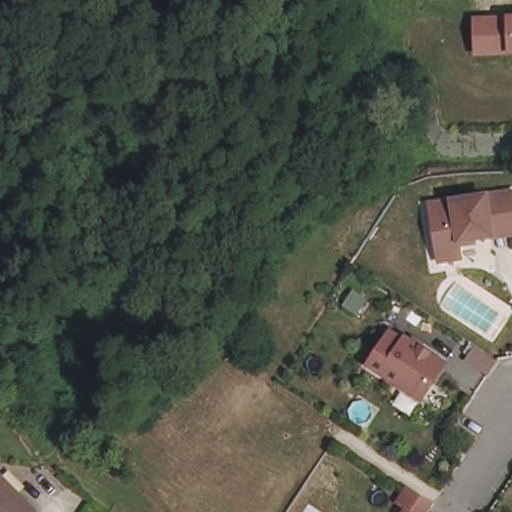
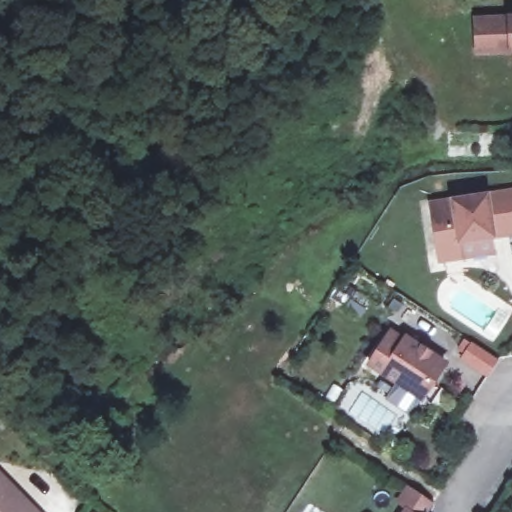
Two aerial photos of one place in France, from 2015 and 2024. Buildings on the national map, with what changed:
unchanged [(479,17),(512,16),(512,48),(480,49),(479,17)]
unchanged [(462,258),(440,261),(433,214),(432,204),(455,201),(512,192),(512,234),(493,236),(495,246),(461,251),(462,258)]
unchanged [(388,399),(395,387),(370,372),(373,367),(395,334),(403,340),(405,337),(445,362),(422,398),(411,414),(388,399)]
unchanged [(409,507),(400,501),(409,487),(434,503),(428,512),(406,512),(409,507)]
unchanged [(21,512),(0,512),(0,491),(21,512)]

